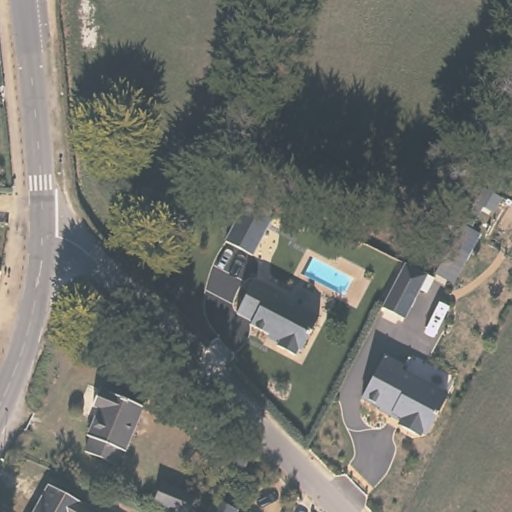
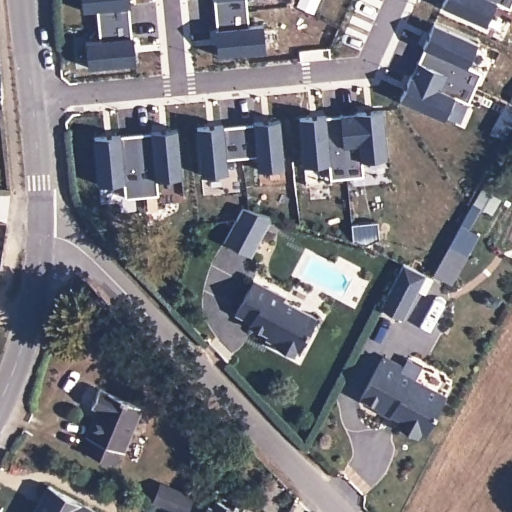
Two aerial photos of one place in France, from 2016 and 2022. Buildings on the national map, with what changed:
new [(86,41),(102,39),(99,9),(84,11),(83,0),(130,0),(136,63),(89,67),(86,41)]
new [(213,0),(248,0),(251,26),(264,25),(266,52),(220,54),(213,0)]
new [(498,2),(487,26),(442,5),(445,0),(512,0),(512,6),(511,9),(498,2)]
demolished [(510,0),(512,0),(512,1),(510,0)]
new [(435,22),(478,42),(468,64),(483,72),(469,103),(457,96),(445,120),(401,99),(435,22)]
new [(331,181),(329,162),(305,166),(300,117),(382,110),(387,157),(362,159),(365,175),(331,181)]
new [(257,170),(257,155),(227,158),(228,172),(202,175),(196,127),(280,120),(285,167),(257,170)]
new [(125,180),(100,184),(95,137),(178,129),(182,177),(157,178),(160,195),(127,197),(125,180)]
new [(242,207),(272,215),(253,256),(226,244),(242,207)]
unchanged [(403,265),(426,277),(402,321),(380,308),(403,265)]
unchanged [(288,294),(322,311),(302,347),(297,345),(294,351),(268,336),(271,330),(252,320),(255,317),(240,309),(259,274),(273,282),(290,290),(288,294)]
unchanged [(409,358),(406,365),(450,388),(427,431),(422,429),(414,431),(405,426),(402,419),(403,417),(393,412),(391,416),(377,409),(379,405),(362,396),(384,353),(387,355),(391,349),(409,358)]
unchanged [(144,407),(126,451),(124,451),(117,464),(86,452),(92,438),(89,436),(100,409),(92,406),(100,388),(144,407)]
unchanged [(251,455),(245,468),(229,462),(235,448),(251,455)]
unchanged [(196,496),(189,512),(181,512),(155,501),(162,482),(196,496)]
unchanged [(104,512),(32,512),(39,500),(43,501),(52,484),(104,512)]
demolished [(241,507),(239,512),(210,512),(214,502),(220,505),(222,498),(241,507)]
new [(208,505),(214,508),(217,501),(235,510),(237,505),(244,507),(245,506),(259,512),(205,512),(208,505)]

